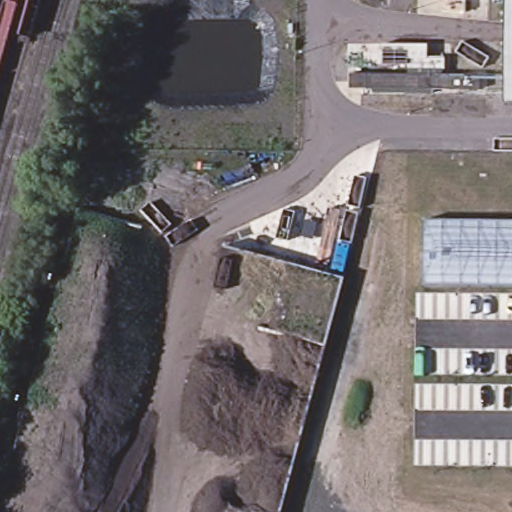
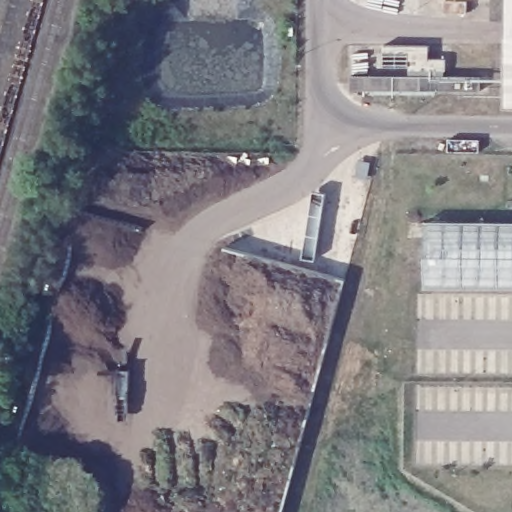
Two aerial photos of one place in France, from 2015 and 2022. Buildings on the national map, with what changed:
unchanged [(507,107),(507,0),(512,0),(512,107),(507,107)]
unchanged [(427,283),(427,221),(512,221),(512,285),(427,283)]

